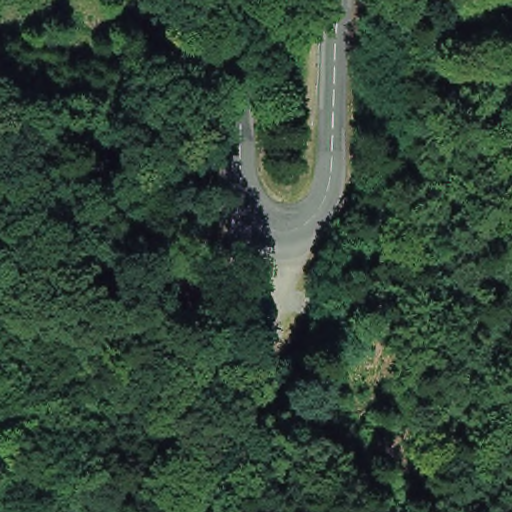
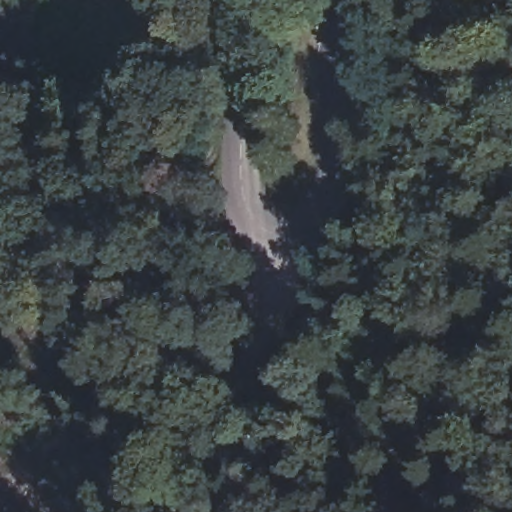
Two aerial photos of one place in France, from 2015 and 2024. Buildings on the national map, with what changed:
[]

